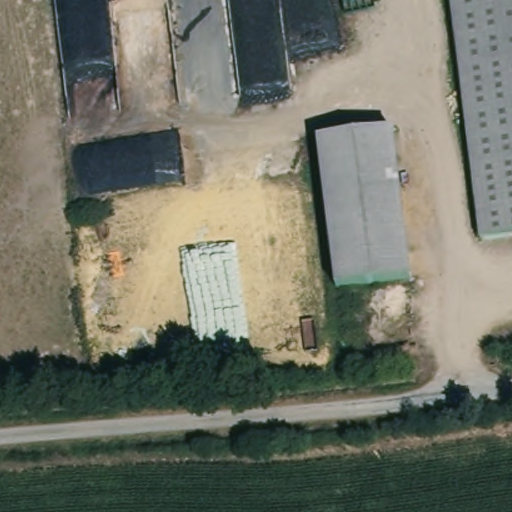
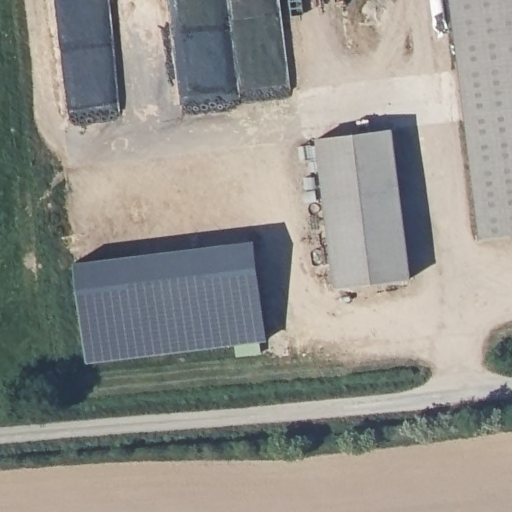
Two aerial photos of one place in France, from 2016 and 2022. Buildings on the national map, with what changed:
unchanged [(443,0),(512,0),(512,239),(488,244),(443,0)]
unchanged [(413,277),(338,290),(313,143),(387,130),(413,277)]
new [(75,261),(257,239),(267,341),(87,362),(75,261)]

